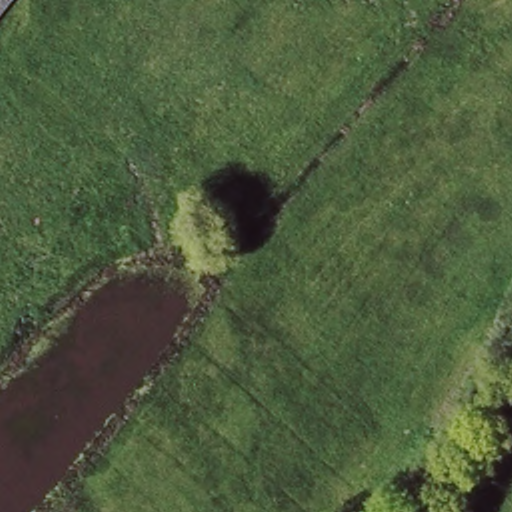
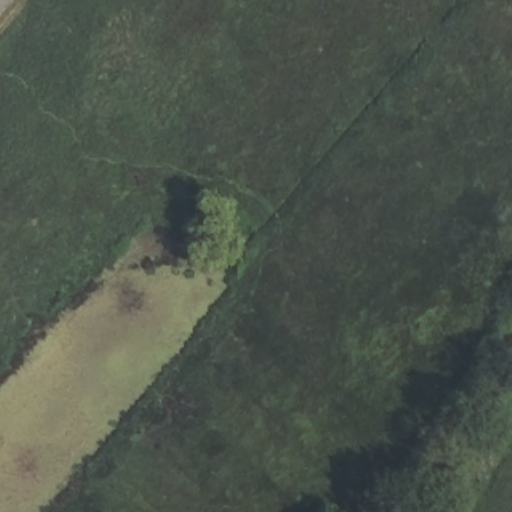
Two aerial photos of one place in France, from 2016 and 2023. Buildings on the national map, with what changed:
unchanged [(3,11),(0,15),(0,0),(11,0),(11,1),(3,11)]

